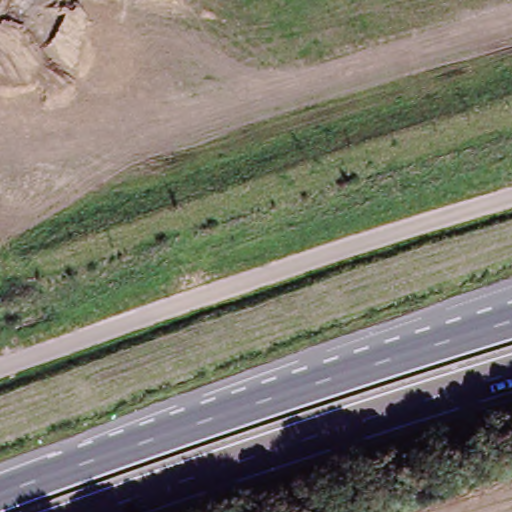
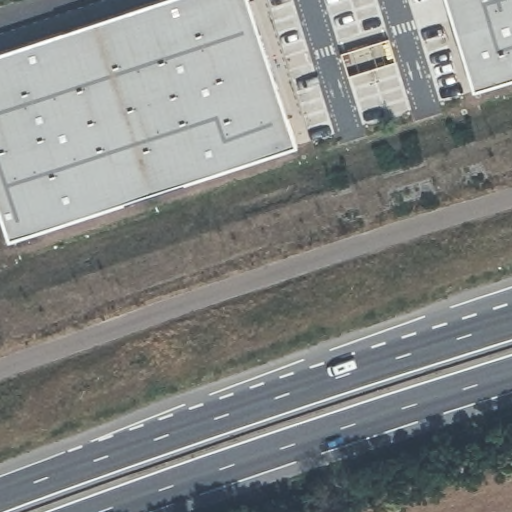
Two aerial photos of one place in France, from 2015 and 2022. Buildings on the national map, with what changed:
new [(245,0),(292,149),(10,240),(0,210),(0,52),(158,0),(245,0)]
new [(446,0),(512,0),(512,79),(473,91),(446,0)]

